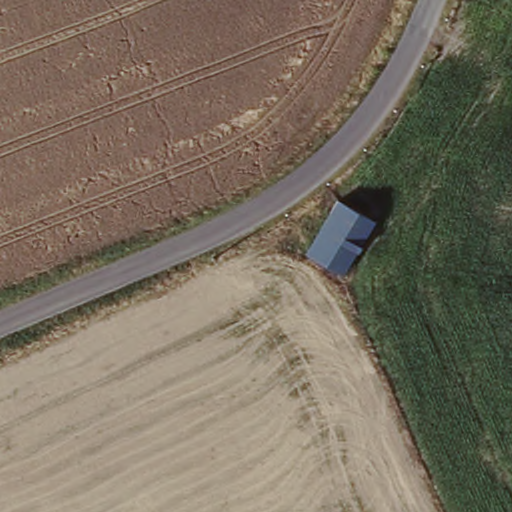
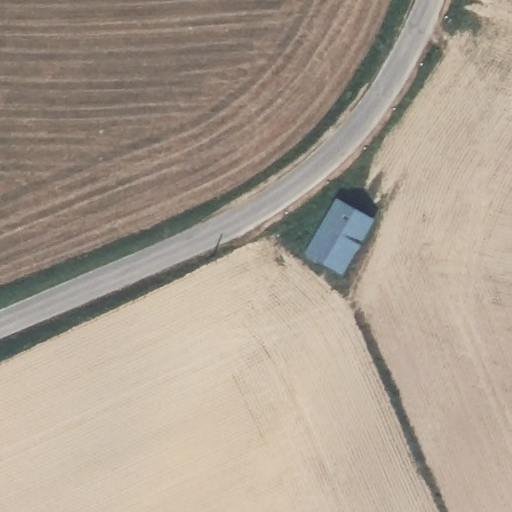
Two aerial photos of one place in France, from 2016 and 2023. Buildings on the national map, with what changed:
unchanged [(371,219),(342,274),(307,255),(336,201),(371,219)]

